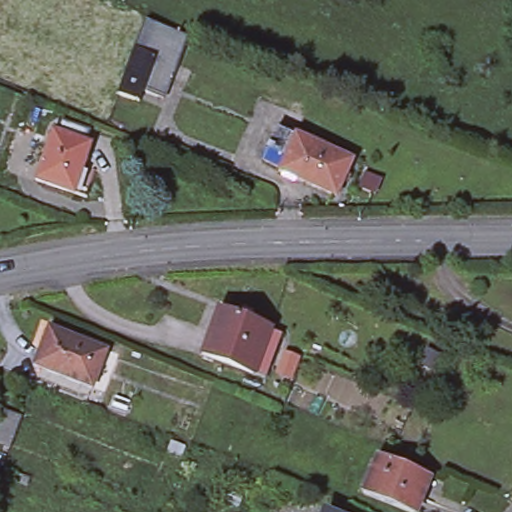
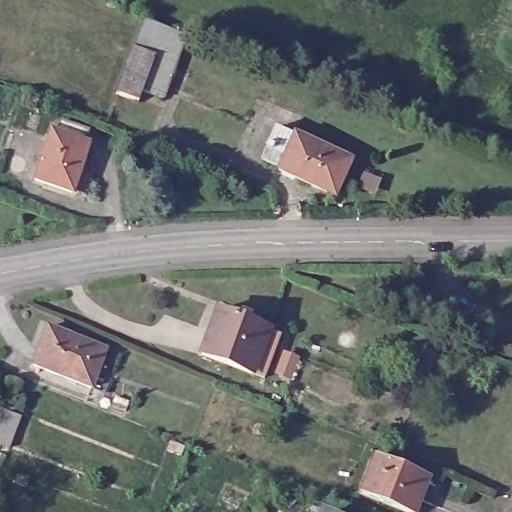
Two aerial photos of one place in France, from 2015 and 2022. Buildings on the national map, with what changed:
unchanged [(156,54),(135,47),(145,19),(186,35),(162,98),(142,90),(156,54)]
unchanged [(139,101),(119,94),(135,47),(156,54),(142,90),(139,101)]
unchanged [(85,197),(72,193),(35,180),(51,130),(57,133),(60,121),(84,129),(81,140),(90,143),(82,165),(94,170),(85,197)]
unchanged [(280,168),(262,159),(276,128),(294,136),(296,133),(351,158),(335,194),(279,171),(280,168)]
unchanged [(266,377),(254,373),(202,356),(219,310),(270,328),(282,332),(266,377)]
unchanged [(51,327),(109,349),(94,388),(36,364),(51,327)]
unchanged [(24,417),(11,450),(0,446),(0,434),(9,411),(24,417)]
unchanged [(379,457),(430,476),(415,512),(408,512),(363,494),(379,457)]
unchanged [(19,476),(30,479),(27,487),(17,482),(19,476)]

